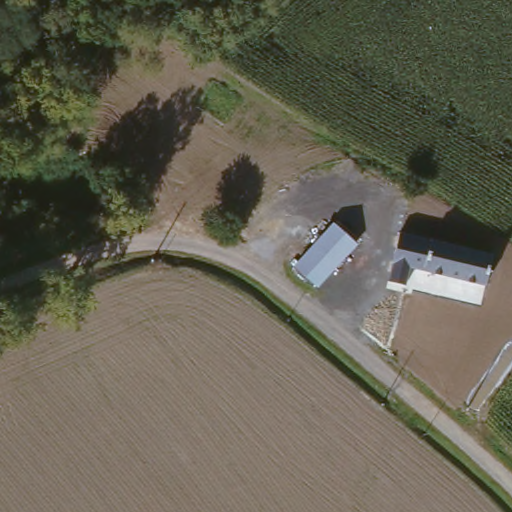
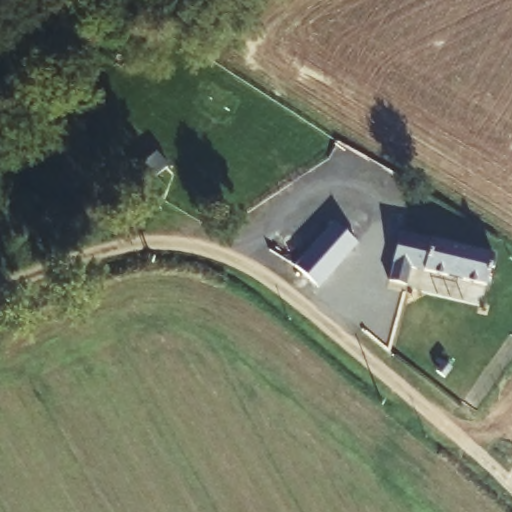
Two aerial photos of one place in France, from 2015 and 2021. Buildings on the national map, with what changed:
unchanged [(338,221),(360,244),(319,285),(294,263),(338,221)]
unchanged [(492,253),(488,274),(486,282),(412,266),(404,295),(379,289),(381,278),(386,279),(399,231),(492,253)]

